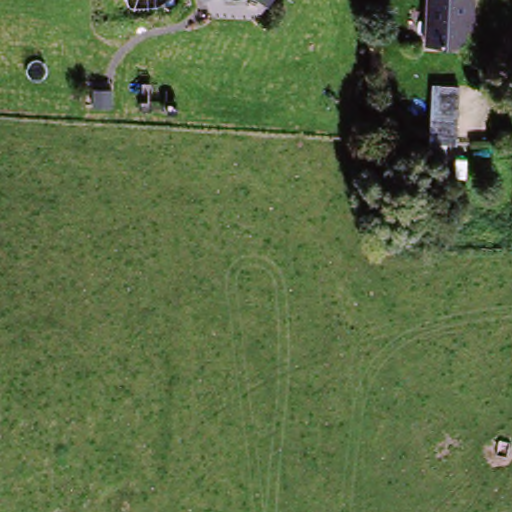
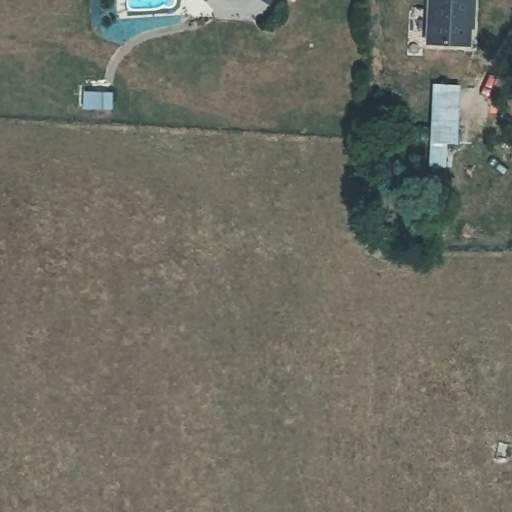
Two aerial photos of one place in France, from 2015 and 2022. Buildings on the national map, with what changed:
unchanged [(272,0),(276,0),(275,2),(272,0)]
unchanged [(426,49),(428,0),(468,0),(466,50),(426,49)]
unchanged [(455,148),(445,149),(440,191),(422,189),(427,144),(430,85),(458,87),(455,148)]

